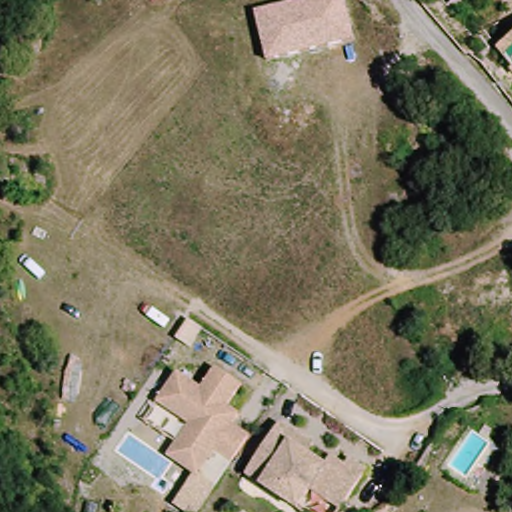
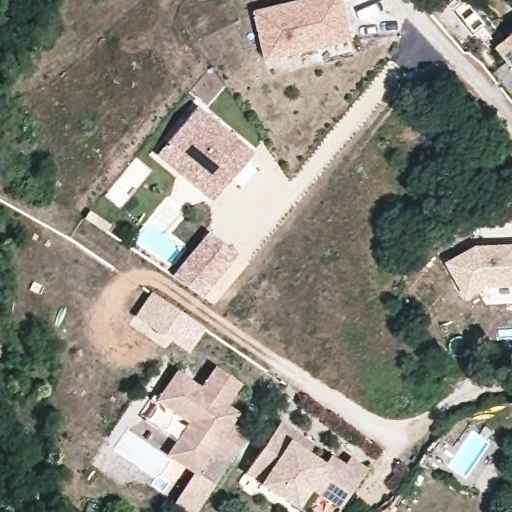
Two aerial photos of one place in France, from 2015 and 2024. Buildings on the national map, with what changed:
unchanged [(265,57),(255,10),(295,0),(345,0),(354,39),(265,57)]
unchanged [(512,32),(512,73),(492,49),(512,32)]
new [(254,152),(213,202),(157,156),(196,106),(254,152)]
new [(235,255),(203,298),(172,276),(207,232),(235,255)]
new [(512,245),(512,283),(490,284),(467,296),(447,261),(480,246),(512,245)]
new [(205,328),(189,353),(135,317),(151,293),(205,328)]
unchanged [(177,438),(149,421),(179,371),(203,385),(215,365),(245,383),(231,403),(238,408),(232,421),(248,432),(233,460),(215,448),(199,473),(169,452),(177,438)]
unchanged [(279,423),(347,465),(327,497),(309,486),(304,492),(287,480),(276,492),(247,470),(279,423)]

